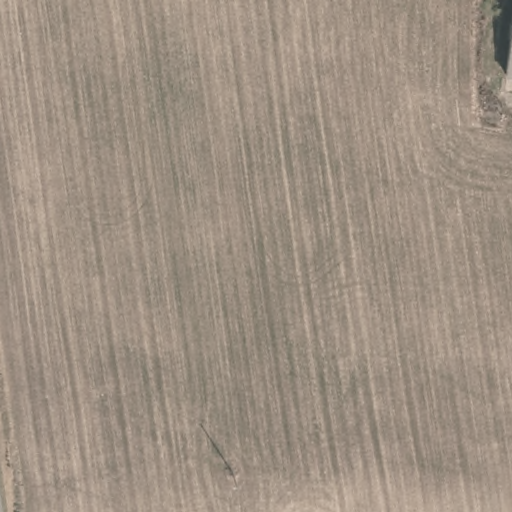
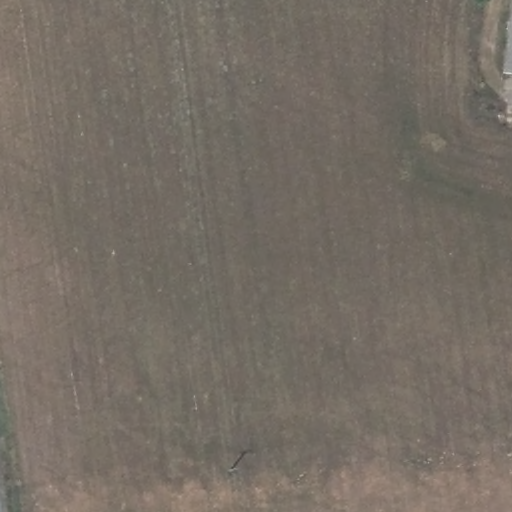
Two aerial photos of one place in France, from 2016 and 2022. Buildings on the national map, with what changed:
unchanged [(510,48),(512,21),(512,76),(509,76),(510,48)]

